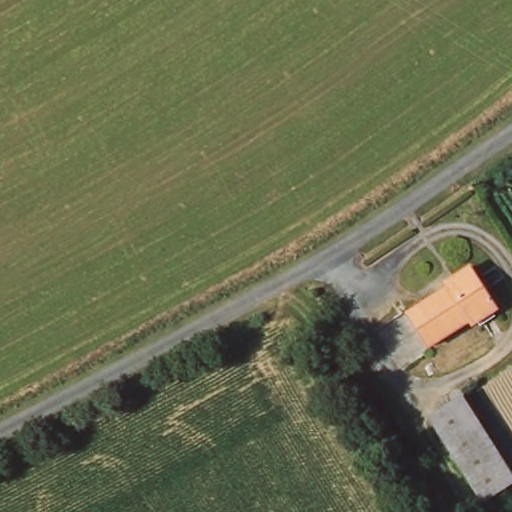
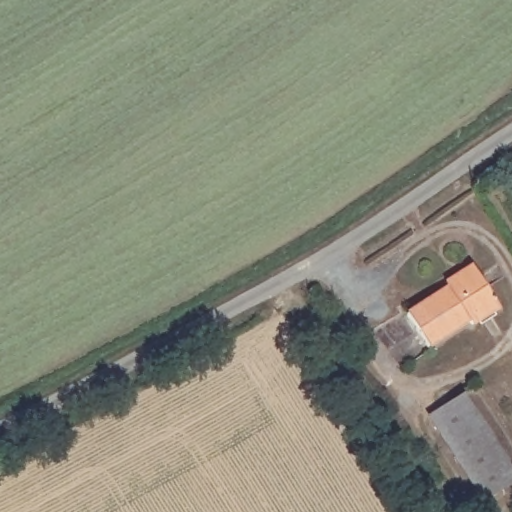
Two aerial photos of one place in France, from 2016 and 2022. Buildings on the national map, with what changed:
unchanged [(443,284),(472,266),(497,308),(468,326),(466,322),(425,346),(407,315),(446,290),(443,284)]
unchanged [(512,472),(512,485),(482,503),(425,417),(460,393),(512,472)]

